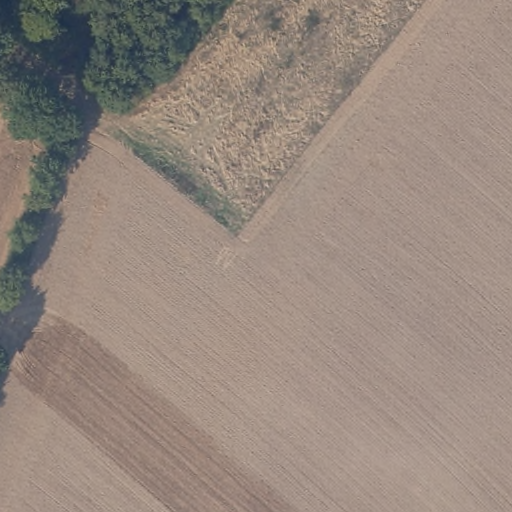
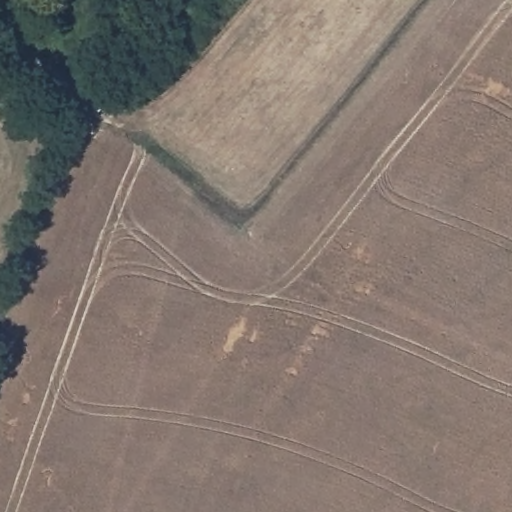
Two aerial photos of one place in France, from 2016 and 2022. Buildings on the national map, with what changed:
[]

